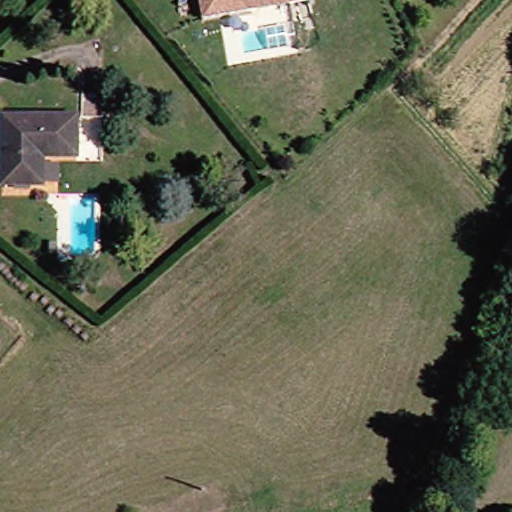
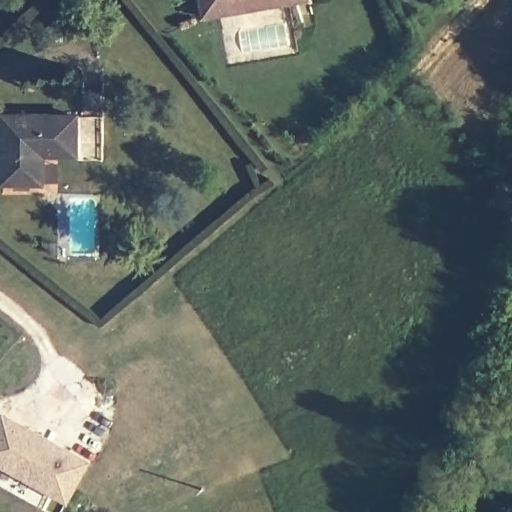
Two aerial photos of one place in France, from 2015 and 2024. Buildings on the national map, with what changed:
unchanged [(199,0),(311,0),(312,0),(202,22),(199,0)]
unchanged [(105,151),(45,154),(48,193),(5,193),(5,147),(4,113),(15,114),(104,114),(105,151)]
new [(0,464),(0,420),(2,416),(85,461),(65,500),(0,464)]

